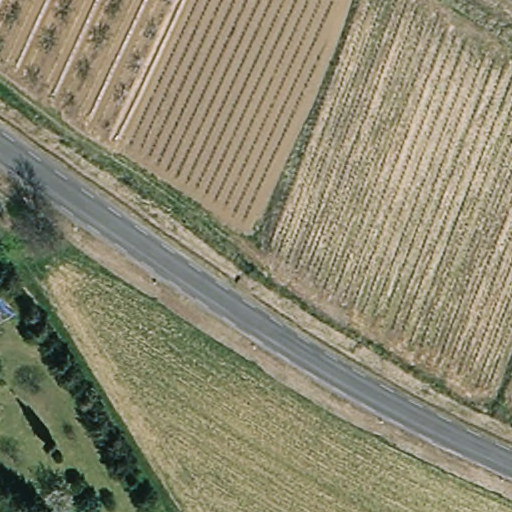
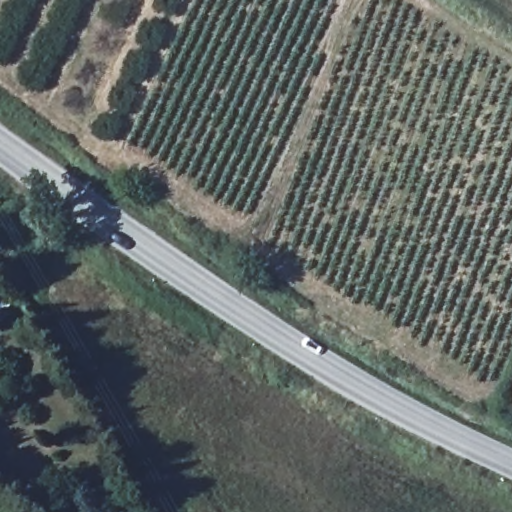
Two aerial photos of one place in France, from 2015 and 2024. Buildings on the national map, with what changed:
unchanged [(50,280),(47,285),(43,281),(46,276),(50,280)]

